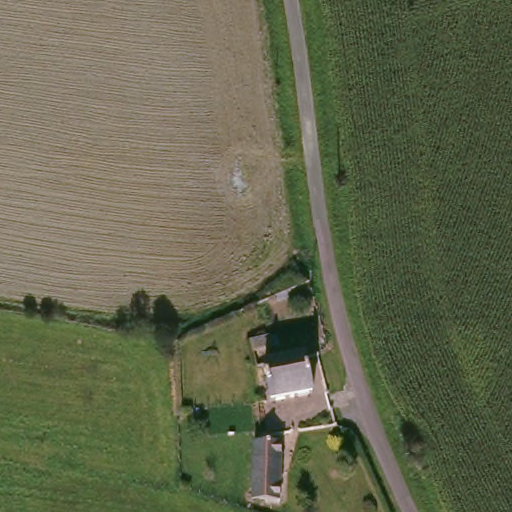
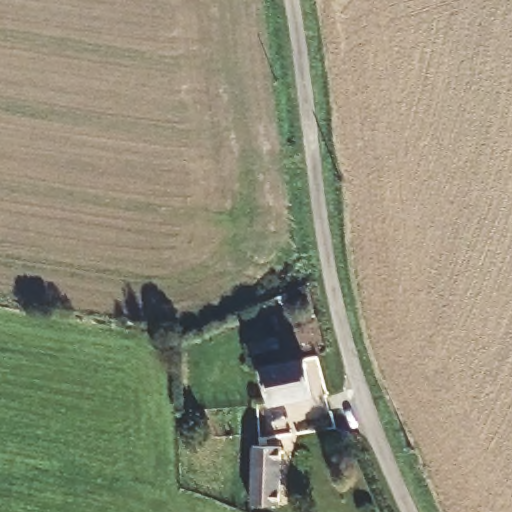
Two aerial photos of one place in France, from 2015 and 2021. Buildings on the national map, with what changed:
unchanged [(244,340),(265,337),(266,349),(246,352),(244,340)]
unchanged [(268,366),(305,361),(310,359),(315,397),(274,403),(268,366)]
unchanged [(262,442),(289,443),(289,498),(260,499),(262,442)]

